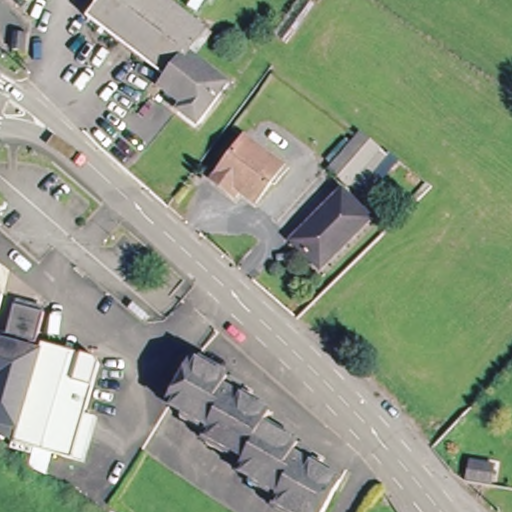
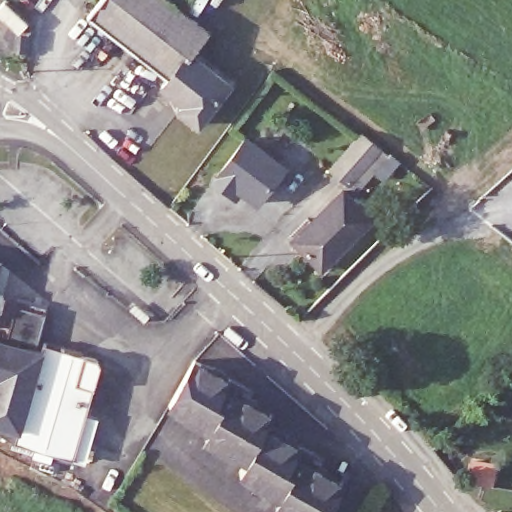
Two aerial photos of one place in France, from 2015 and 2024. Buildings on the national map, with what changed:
unchanged [(100,0),(168,0),(206,29),(168,78),(87,17),(100,0)]
unchanged [(26,52),(14,51),(15,33),(29,35),(26,52)]
unchanged [(189,54),(229,84),(198,125),(179,111),(184,104),(161,87),(189,54)]
unchanged [(380,147),(349,182),(333,169),(364,134),(380,147)]
unchanged [(241,192),(237,198),(214,181),(246,139),(284,167),(257,203),(241,192)]
unchanged [(343,191),(372,219),(322,270),(293,241),(343,191)]
unchanged [(0,310),(0,295),(3,296),(0,310)]
unchanged [(9,332),(19,335),(15,345),(40,352),(14,442),(0,433),(0,340),(5,342),(9,332)]
unchanged [(36,448),(14,442),(40,352),(43,343),(97,358),(100,365),(85,414),(98,417),(84,463),(72,460),(53,453),(46,475),(30,466),(36,448)]
unchanged [(248,392),(243,401),(277,419),(269,432),(319,458),(313,468),(347,487),(333,512),(284,512),(279,510),(284,501),(244,478),(250,466),(209,443),(214,432),(174,410),(199,365),(248,392)]

